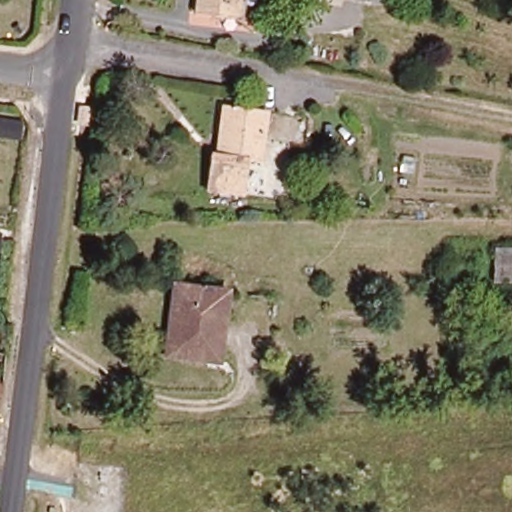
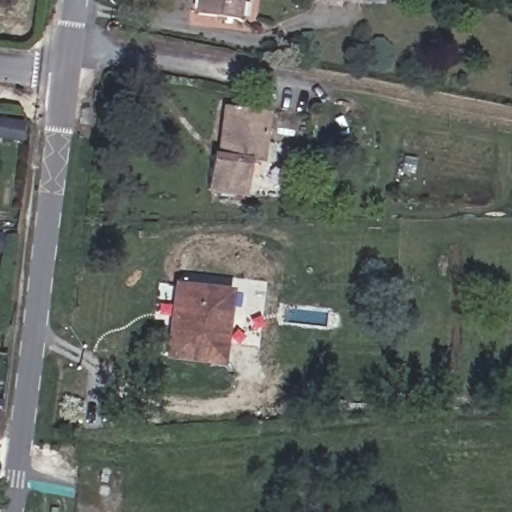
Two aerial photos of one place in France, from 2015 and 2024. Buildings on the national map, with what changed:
unchanged [(245,18),(203,13),(205,0),(246,0),(245,18)]
unchanged [(248,159),(243,191),(206,186),(211,150),(221,151),(227,106),(266,110),(259,160),(248,159)]
demolished [(490,254),(512,254),(512,286),(489,286),(490,254)]
unchanged [(200,362),(161,354),(175,289),(227,300),(222,329),(215,365),(200,362)]
unchanged [(0,397),(0,354),(5,354),(0,397)]

